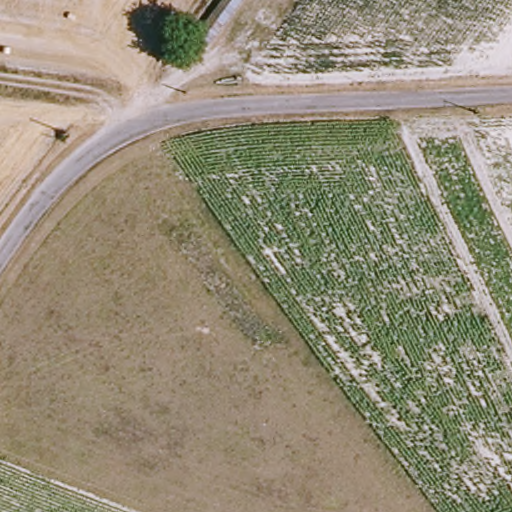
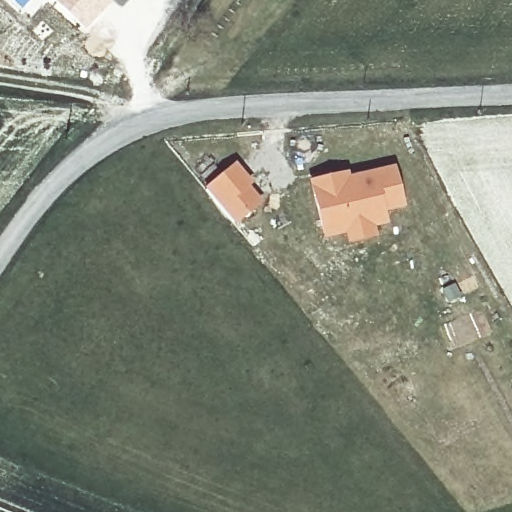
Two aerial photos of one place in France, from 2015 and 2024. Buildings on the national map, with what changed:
new [(85,28),(54,0),(112,0),(85,28)]
new [(233,165),(247,182),(243,185),(256,201),(231,222),(203,189),(233,165)]
new [(347,242),(343,226),(322,231),(311,182),(333,177),(344,175),(345,180),(390,169),(397,201),(378,205),(380,217),(367,220),(371,237),(347,242)]

